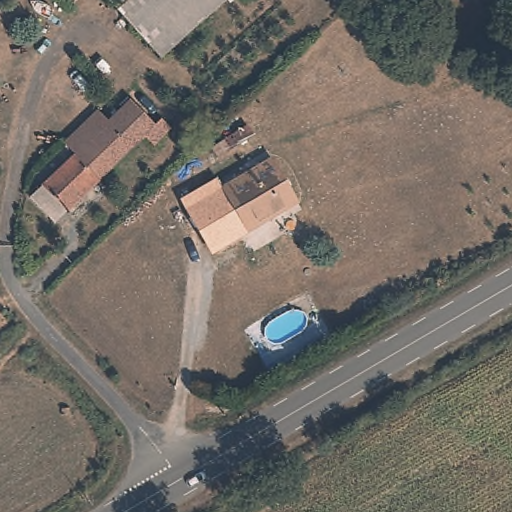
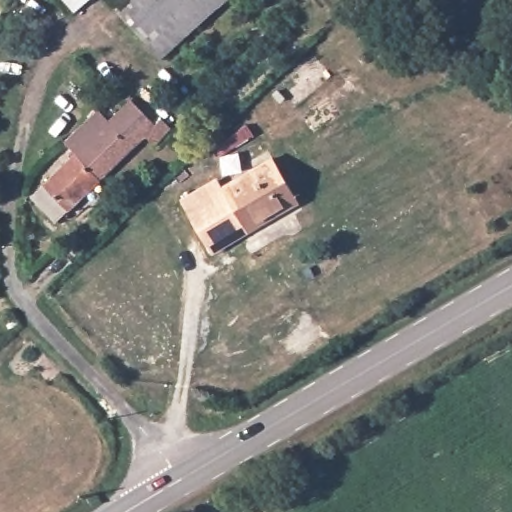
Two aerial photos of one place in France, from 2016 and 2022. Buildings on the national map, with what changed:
unchanged [(163,58),(112,0),(224,0),(163,58)]
unchanged [(43,182),(97,132),(89,123),(106,107),(113,115),(129,101),(155,127),(68,208),(43,182)]
unchanged [(271,157),(298,202),(250,231),(222,186),(271,157)]
unchanged [(68,208),(82,223),(64,239),(26,198),(43,182),(68,208)]

